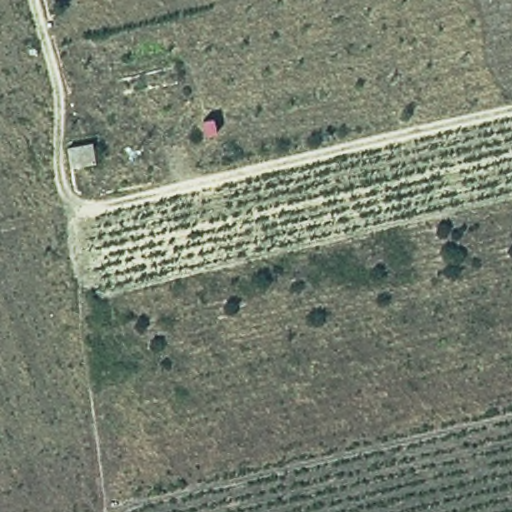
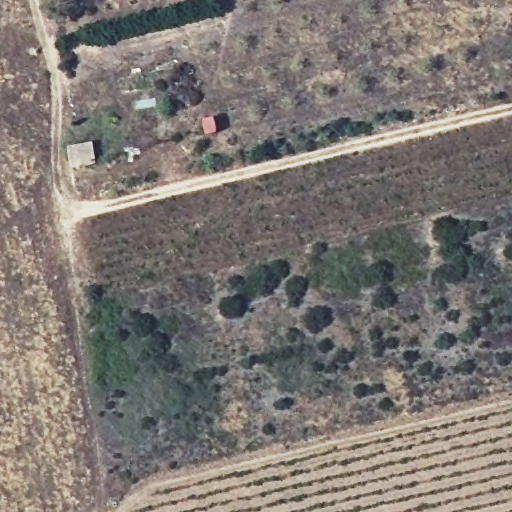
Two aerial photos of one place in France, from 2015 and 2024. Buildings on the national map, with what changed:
unchanged [(67,149),(95,146),(97,166),(72,169),(67,149)]

